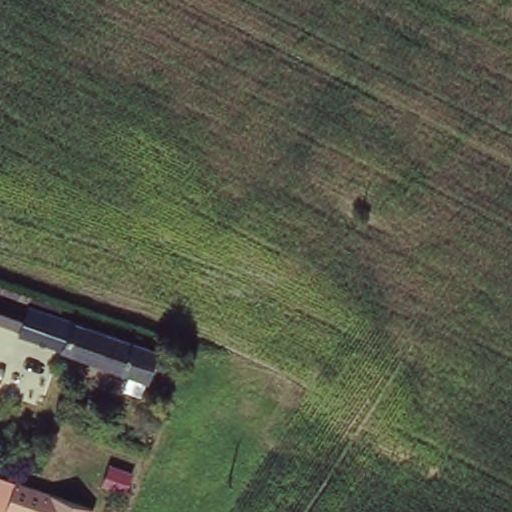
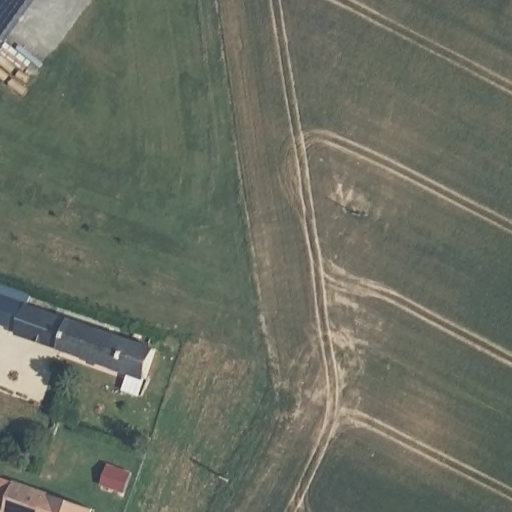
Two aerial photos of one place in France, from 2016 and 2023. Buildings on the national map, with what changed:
new [(0,0),(31,0),(0,43),(0,0)]
unchanged [(19,298),(82,323),(101,330),(146,347),(136,376),(77,355),(8,330),(19,298)]
unchanged [(16,477),(92,506),(89,512),(24,512),(6,505),(16,477)]

